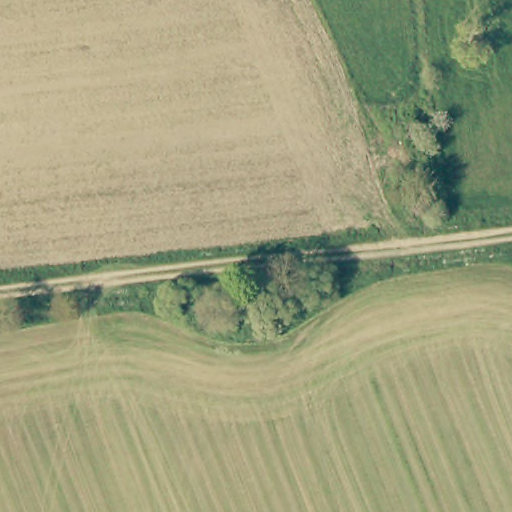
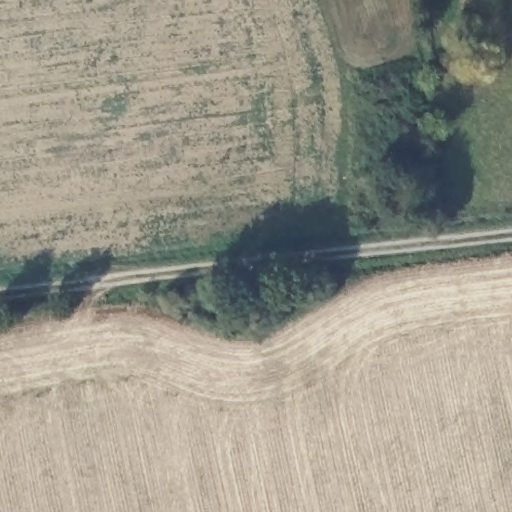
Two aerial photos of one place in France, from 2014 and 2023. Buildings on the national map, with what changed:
[]

